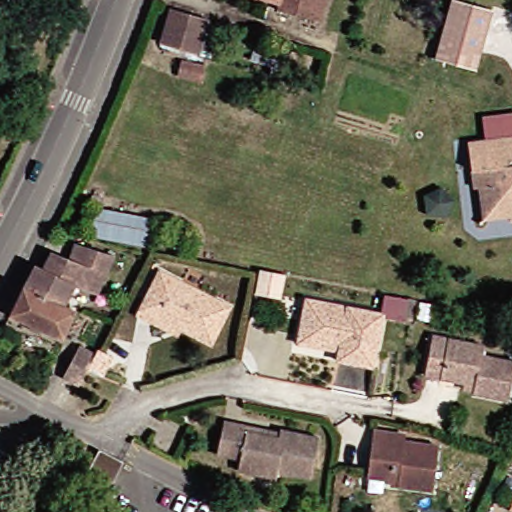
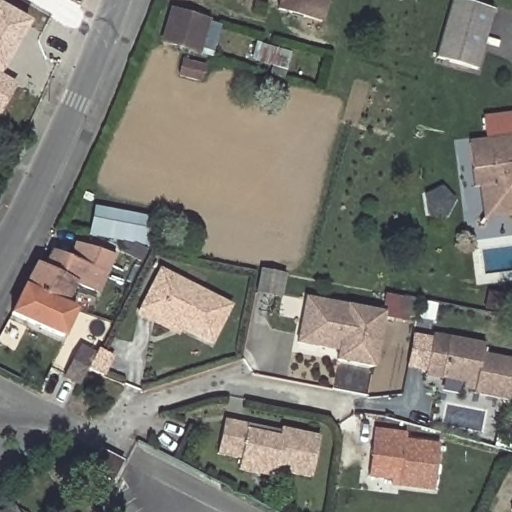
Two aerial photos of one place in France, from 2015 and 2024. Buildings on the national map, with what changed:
unchanged [(325,17),(282,5),(283,0),(331,0),(325,17)]
unchanged [(454,0),(457,0),(494,11),(475,70),(435,59),(454,0)]
new [(0,75),(0,8),(28,24),(0,75)]
unchanged [(177,10),(215,22),(205,55),(167,43),(177,10)]
unchanged [(291,55),(286,70),(253,58),(257,44),(291,55)]
new [(15,86),(0,112),(0,78),(15,86)]
unchanged [(484,209),(481,187),(474,189),(471,172),(467,145),(485,142),(482,119),(512,115),(512,217),(486,220),(484,209)]
unchanged [(95,205),(155,215),(150,246),(89,235),(95,205)]
unchanged [(51,278),(70,243),(114,251),(94,287),(81,281),(68,305),(79,309),(64,338),(15,314),(37,271),(51,278)]
unchanged [(288,274),(283,299),(253,292),(257,268),(288,274)]
unchanged [(143,310),(148,302),(166,270),(233,309),(213,342),(189,328),(185,335),(143,310)]
unchanged [(305,328),(311,296),(390,310),(380,365),(342,356),(344,347),(303,339),(305,328)]
unchanged [(427,374),(437,333),(470,341),(487,346),(485,357),(512,364),(512,374),(505,401),(476,394),(463,391),(465,383),(427,374)]
unchanged [(91,357),(84,371),(75,388),(61,382),(76,350),(91,357)]
unchanged [(264,476),(239,471),(241,463),(219,458),(226,425),(282,435),(294,427),(326,434),(318,474),(283,468),(281,479),(264,476)]
unchanged [(409,433),(407,437),(443,445),(435,487),(399,480),(399,477),(371,471),(378,427),(409,433)]
unchanged [(0,512),(16,502),(23,512),(0,512)]

